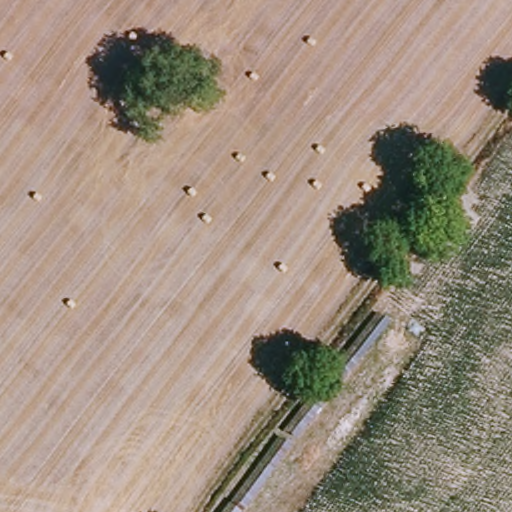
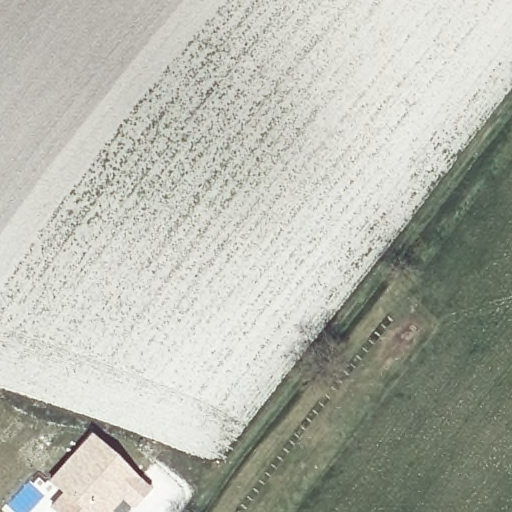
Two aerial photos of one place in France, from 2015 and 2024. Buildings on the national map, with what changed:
new [(90,432),(150,488),(132,509),(122,501),(112,512),(54,512),(49,507),(60,493),(47,480),(90,432)]

